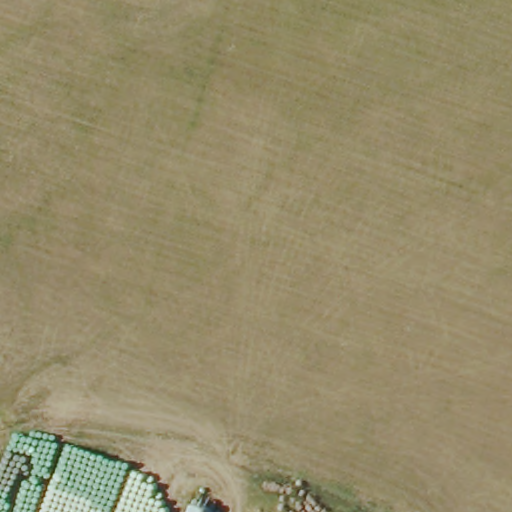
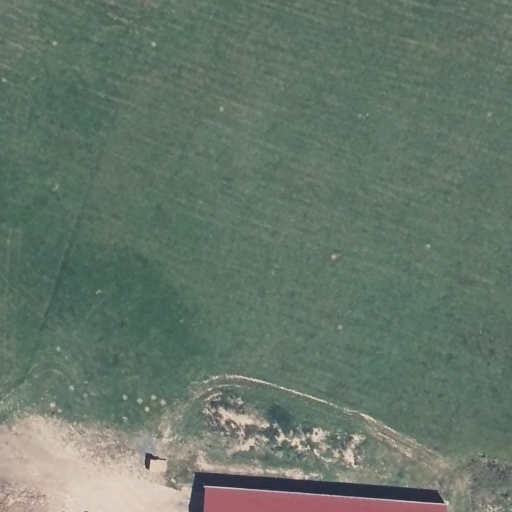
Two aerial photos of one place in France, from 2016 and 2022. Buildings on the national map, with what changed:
new [(204,484),(444,503),(444,512),(203,512),(204,484)]

